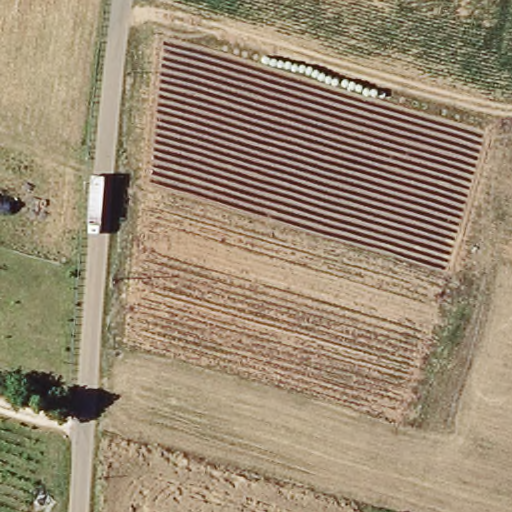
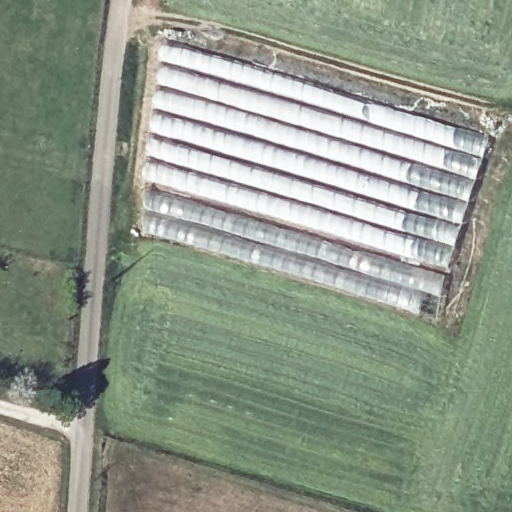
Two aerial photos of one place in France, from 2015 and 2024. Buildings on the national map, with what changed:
demolished [(496,121),(452,271),(135,179),(150,53),(158,26),(496,121)]

